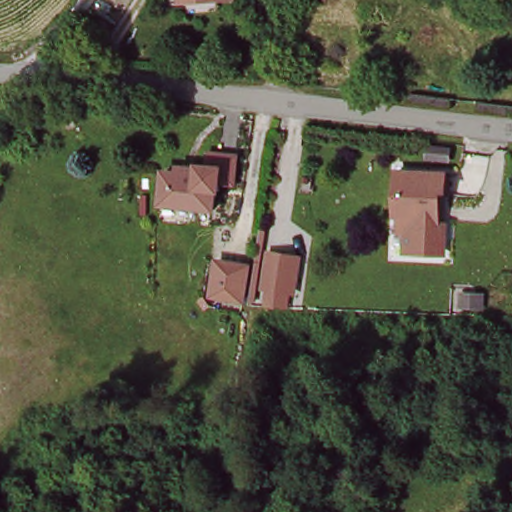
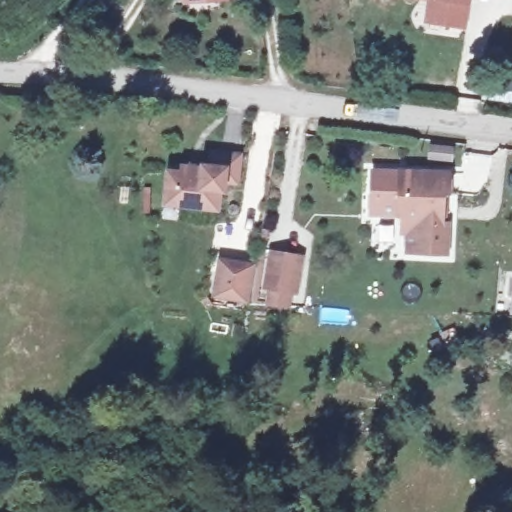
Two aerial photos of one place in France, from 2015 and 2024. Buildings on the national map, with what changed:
unchanged [(234,0),(180,6),(180,0),(234,0)]
new [(471,0),(470,7),(468,25),(431,22),(432,12),(433,0),(471,0)]
unchanged [(234,166),(233,192),(220,194),(220,202),(215,202),(214,219),(162,214),(163,182),(180,183),(181,179),(198,180),(199,175),(207,175),(209,165),(234,166)]
unchanged [(436,175),(436,199),(430,200),(429,227),(407,227),(407,237),(391,237),(392,196),(386,194),(386,174),(436,175)]
unchanged [(450,257),(402,256),(404,240),(427,241),(427,230),(449,233),(450,257)]
unchanged [(291,298),(261,295),(266,252),(297,256),(291,298)]
unchanged [(253,265),(246,303),(212,297),(217,260),(253,265)]

